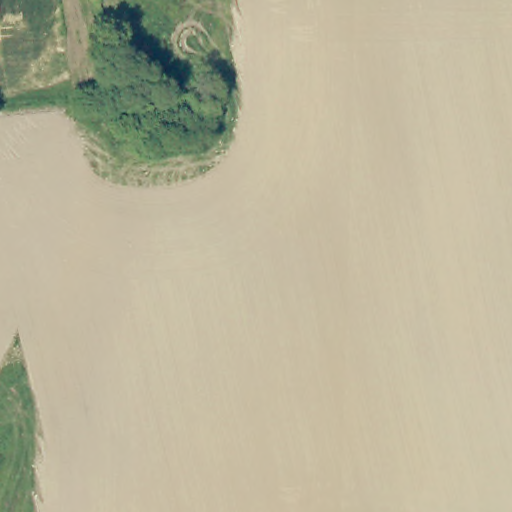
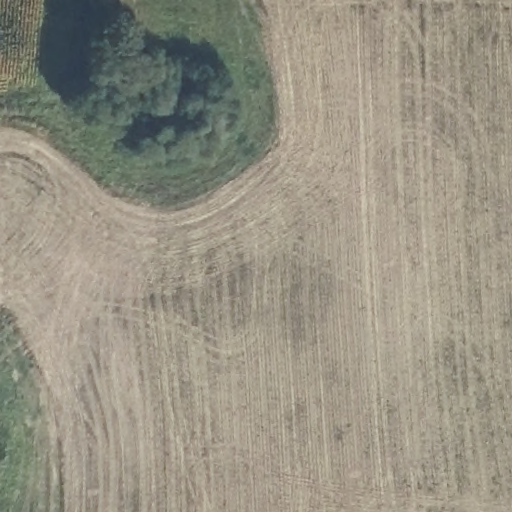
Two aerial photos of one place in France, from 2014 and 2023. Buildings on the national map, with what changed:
[]

